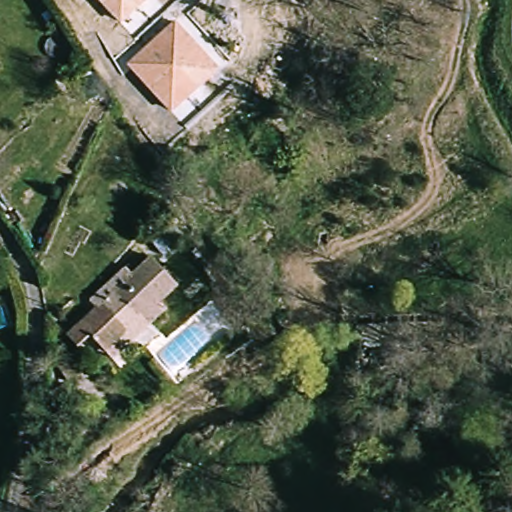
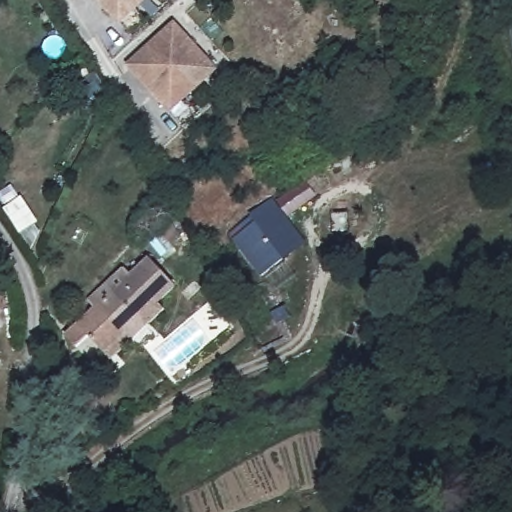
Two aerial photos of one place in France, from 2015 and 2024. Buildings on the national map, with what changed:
unchanged [(123,19),(107,0),(144,0),(123,19)]
unchanged [(172,28),(211,72),(168,112),(128,69),(172,28)]
new [(250,218),(248,216),(271,198),(305,244),(285,261),(283,259),(261,278),(229,234),(250,218)]
unchanged [(177,288),(107,351),(93,335),(79,347),(68,335),(151,258),(177,288)]

